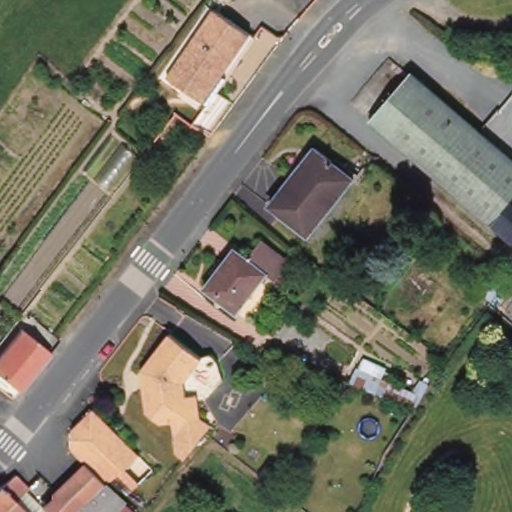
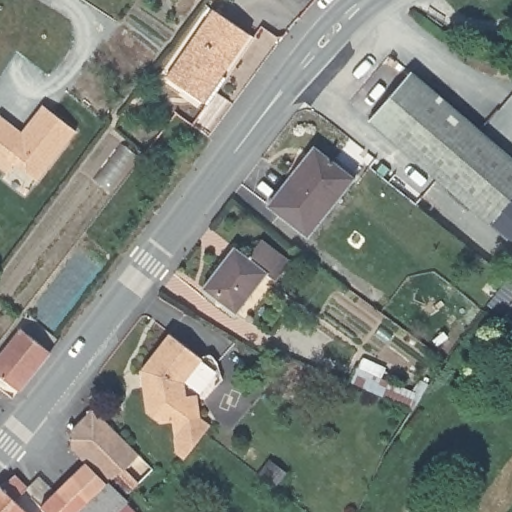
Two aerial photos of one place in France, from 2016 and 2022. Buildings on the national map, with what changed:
unchanged [(249,39),(202,106),(161,78),(209,11),(249,39)]
unchanged [(512,162),(512,249),(508,245),(364,122),(408,73),(512,162)]
new [(38,180),(18,162),(10,173),(0,166),(0,113),(22,131),(43,105),(78,130),(38,180)]
unchanged [(292,169),(311,147),(349,178),(303,235),(270,209),(298,174),(292,169)]
unchanged [(243,260),(257,241),(285,262),(272,281),(260,273),(231,312),(200,289),(229,249),(243,260)]
unchanged [(170,327),(203,352),(184,379),(185,398),(189,397),(191,418),(202,426),(182,454),(177,461),(165,453),(164,440),(162,421),(149,422),(139,413),(143,366),(170,327)]
unchanged [(34,339),(40,344),(37,348),(46,355),(12,395),(0,383),(0,349),(16,331),(30,343),(34,339)]
unchanged [(346,384),(358,359),(424,385),(411,411),(346,384)]
unchanged [(109,484),(128,503),(122,510),(124,512),(0,512),(0,483),(9,475),(39,506),(81,465),(66,448),(67,430),(89,410),(137,456),(109,484)]
unchanged [(287,454),(279,465),(269,457),(277,447),(287,454)]

